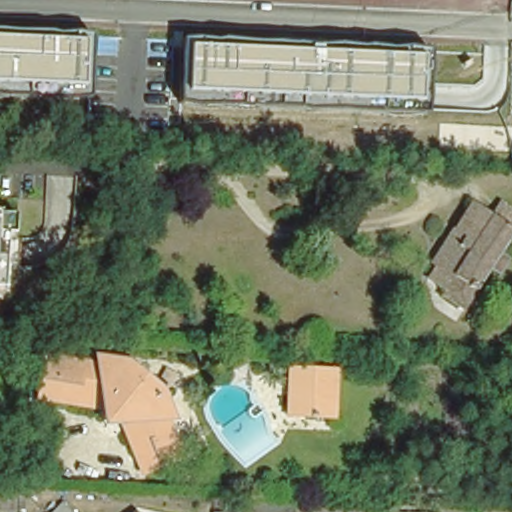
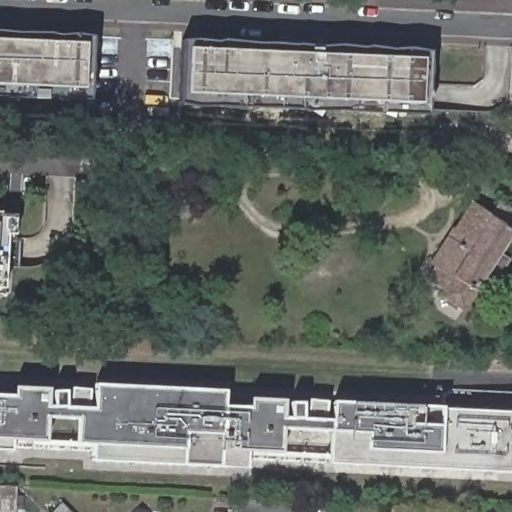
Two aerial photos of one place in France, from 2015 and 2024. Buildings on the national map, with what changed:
unchanged [(91,100),(0,96),(0,32),(96,36),(91,100)]
unchanged [(431,49),(427,114),(181,104),(184,39),(431,49)]
unchanged [(504,273),(497,268),(469,309),(449,295),(454,288),(440,279),(450,250),(473,256),(476,251),(469,245),(474,237),(461,228),(479,203),(512,227),(512,246),(505,255),(512,261),(512,263),(504,273)]
unchanged [(2,211),(18,212),(17,232),(10,232),(7,286),(0,286),(0,209),(2,209),(2,211)]
demolished [(163,393),(174,422),(167,422),(181,459),(142,474),(122,427),(118,418),(116,414),(102,411),(74,406),(75,400),(67,399),(59,397),(58,403),(36,399),(44,357),(66,360),(64,367),(79,369),(80,362),(96,365),(96,357),(125,362),(125,367),(123,382),(144,400),(158,395),(163,393)]
new [(95,454),(0,449),(0,389),(51,391),(50,408),(55,408),(56,393),(68,394),(67,410),(74,410),(75,391),(93,392),(92,410),(99,410),(100,390),(227,397),(225,405),(220,466),(94,463),(95,454)]
new [(512,411),(512,453),(510,472),(386,465),(372,475),(325,472),(327,462),(248,458),(247,467),(220,466),(225,405),(249,407),(250,398),(284,399),(512,411)]
unchanged [(0,512),(0,486),(15,487),(15,512),(0,512)]
unchanged [(67,512),(55,512),(61,506),(67,512)]
unchanged [(231,506),(286,509),(286,512),(231,512),(231,507),(231,506)]

